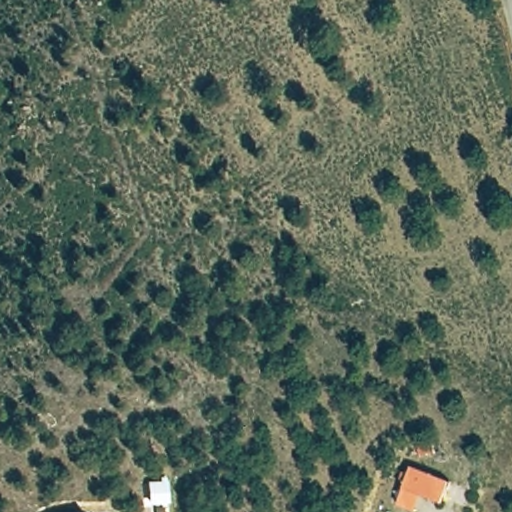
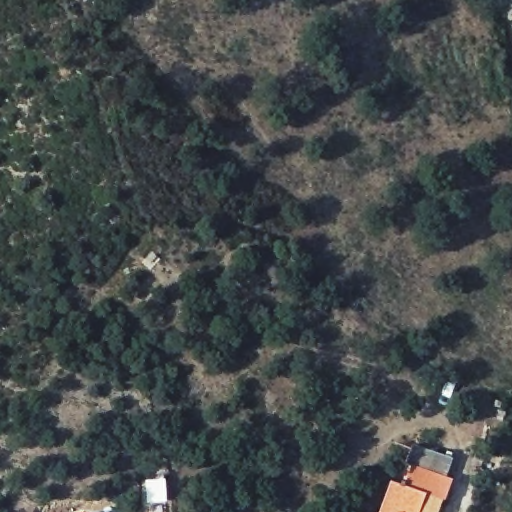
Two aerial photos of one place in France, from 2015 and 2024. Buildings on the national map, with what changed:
unchanged [(405,490),(411,471),(453,487),(446,506),(405,490)]

